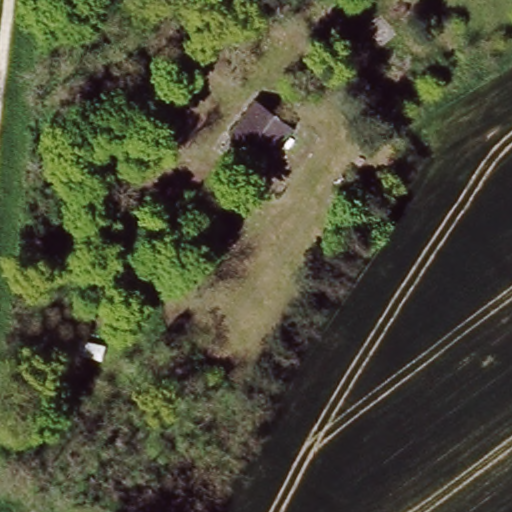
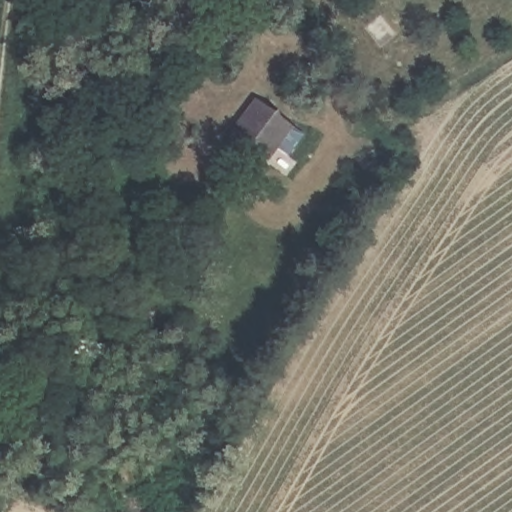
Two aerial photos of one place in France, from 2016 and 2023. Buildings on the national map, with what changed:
unchanged [(291,117),(267,153),(258,147),(250,158),(225,141),(256,94),(291,117)]

